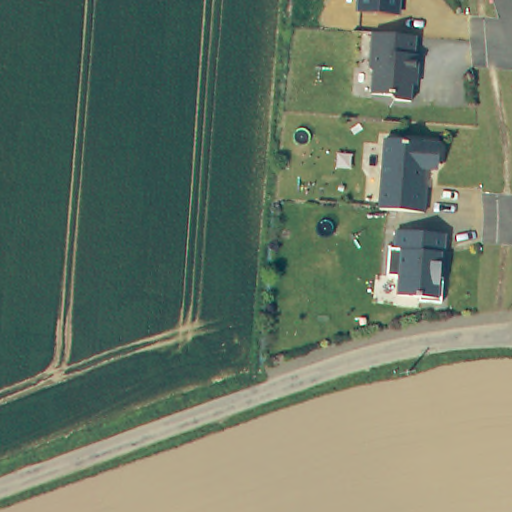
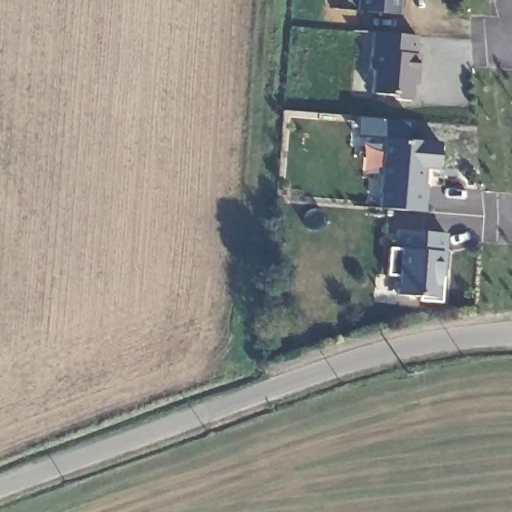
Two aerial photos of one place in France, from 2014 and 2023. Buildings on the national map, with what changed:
unchanged [(359,0),(397,0),(396,9),(358,6),(359,0)]
unchanged [(417,31),(416,47),(420,48),(418,68),(413,68),(412,96),(393,95),(390,90),(371,90),(372,67),(369,63),(372,27),(413,30),(417,31)]
unchanged [(376,212),(381,141),(436,145),(435,166),(430,170),(417,170),(418,187),(422,186),(421,215),(376,212)]
unchanged [(437,269),(440,269),(438,294),(416,293),(416,290),(395,288),(395,268),(385,267),(385,241),(391,241),(392,222),(442,226),(440,261),(437,262),(437,269)]

